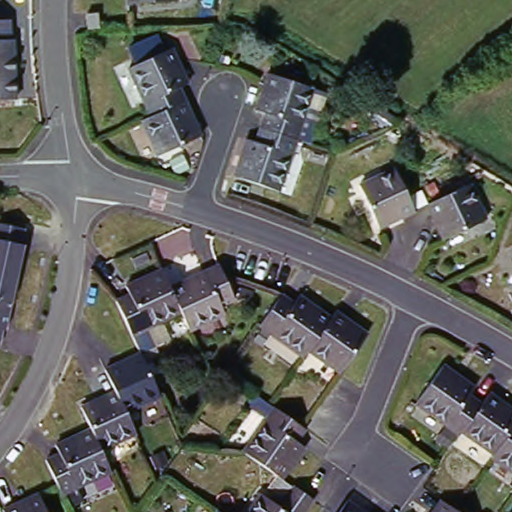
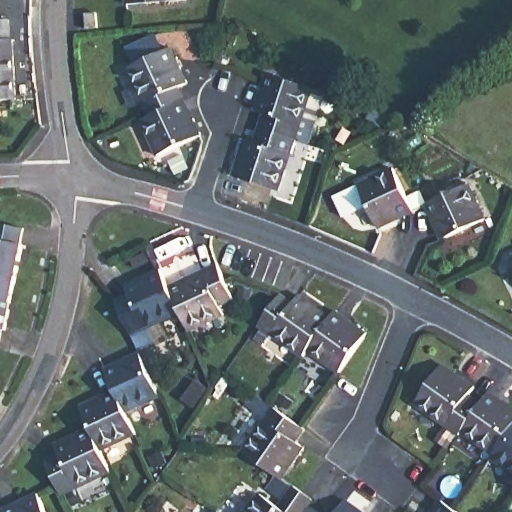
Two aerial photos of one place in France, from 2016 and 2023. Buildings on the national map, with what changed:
unchanged [(127,6),(126,0),(176,0),(176,2),(127,6)]
unchanged [(99,14),(100,29),(89,29),(89,15),(99,14)]
unchanged [(13,45),(16,45),(21,102),(0,104),(0,26),(12,25),(13,45)]
unchanged [(177,49),(181,58),(194,85),(185,90),(190,101),(153,117),(131,69),(177,49)]
unchanged [(263,114),(254,111),(266,75),(312,90),(297,140),(258,128),(263,114)]
unchanged [(153,117),(190,101),(206,137),(161,157),(146,121),(153,117)]
unchanged [(245,140),(253,143),(258,128),(297,140),(281,191),(233,176),(245,140)]
unchanged [(416,210),(381,227),(361,184),(396,167),(416,210)]
unchanged [(432,203),(471,185),(487,220),(443,240),(427,205),(432,203)]
unchanged [(2,335),(0,344),(0,230),(26,235),(22,251),(26,251),(22,266),(21,272),(12,308),(11,315),(7,335),(2,335)]
unchanged [(234,300),(221,306),(225,315),(190,331),(180,310),(168,285),(216,262),(234,300)]
unchanged [(129,293),(125,283),(160,267),(168,285),(180,310),(131,332),(116,300),(129,293)]
unchanged [(331,322),(306,356),(301,363),(257,332),(281,301),(282,300),(295,308),(301,300),(331,322)]
unchanged [(331,322),(336,316),(367,338),(338,380),(306,356),(331,322)]
unchanged [(105,373),(140,357),(160,402),(126,418),(116,395),(105,373)]
unchanged [(475,390),(471,398),(483,407),(461,439),(459,441),(416,409),(444,368),(475,390)]
unchanged [(80,410),(116,395),(126,418),(136,438),(100,453),(90,432),(80,410)]
unchanged [(492,396),(512,411),(512,434),(492,461),(461,439),(483,407),(492,396)]
unchanged [(306,452),(283,484),(241,455),(272,412),(301,432),(306,435),(297,446),(306,452)]
unchanged [(90,432),(100,453),(111,477),(62,500),(46,463),(59,457),(56,448),(90,432)]
unchanged [(492,461),(512,434),(512,480),(491,464),(492,461)]
unchanged [(277,511),(292,490),(302,496),(312,505),(307,512),(248,512),(258,497),(277,511)]
unchanged [(2,509),(37,493),(46,512),(3,512),(2,509)]
unchanged [(512,497),(512,499),(511,498),(512,497)]
unchanged [(360,512),(343,512),(349,504),(360,512)]
unchanged [(451,512),(435,512),(441,505),(451,512)]

